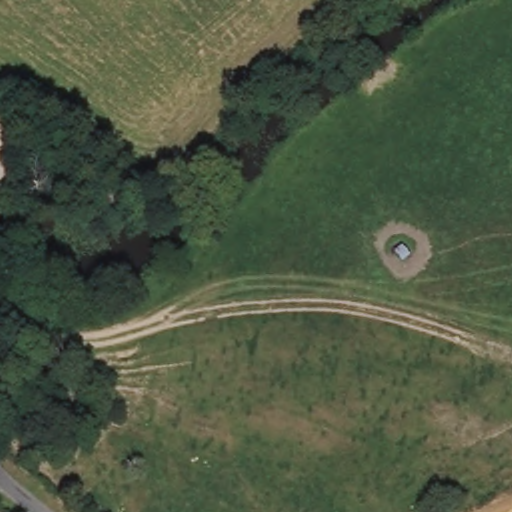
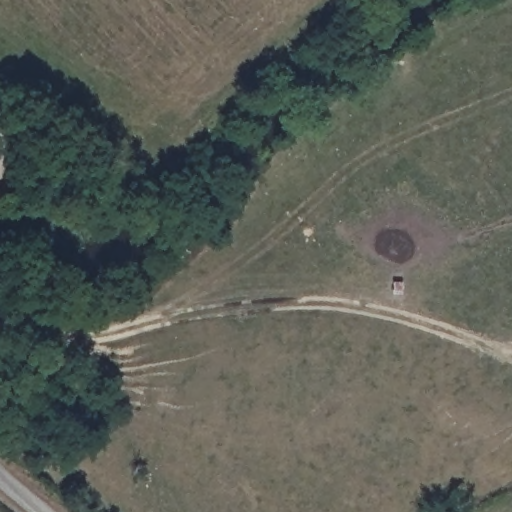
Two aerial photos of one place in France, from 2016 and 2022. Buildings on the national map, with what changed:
[]

